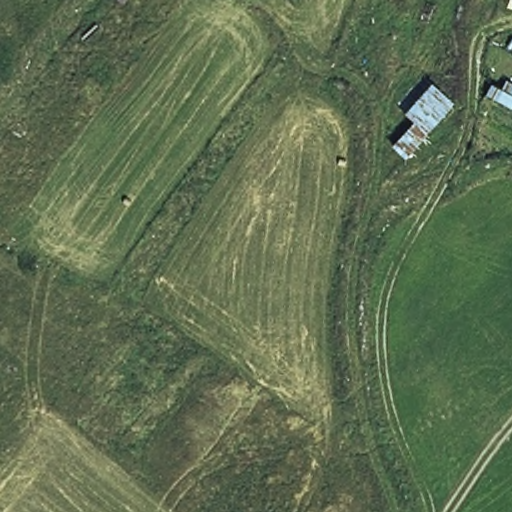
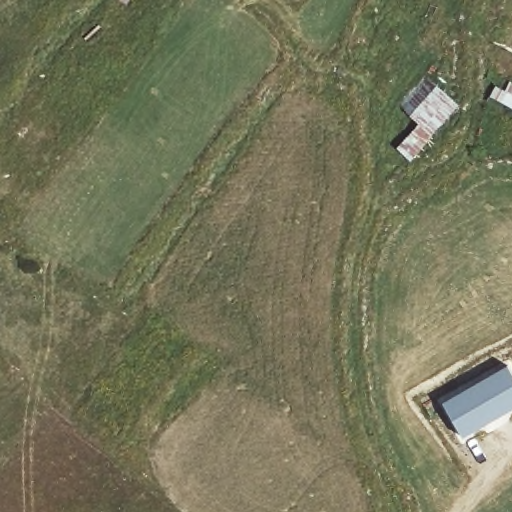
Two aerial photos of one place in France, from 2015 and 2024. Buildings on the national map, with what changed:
unchanged [(440,136),(415,163),(395,149),(415,124),(400,110),(410,98),(428,77),(462,110),(440,136)]
new [(512,411),(463,439),(442,403),(507,366),(512,374),(512,411)]

